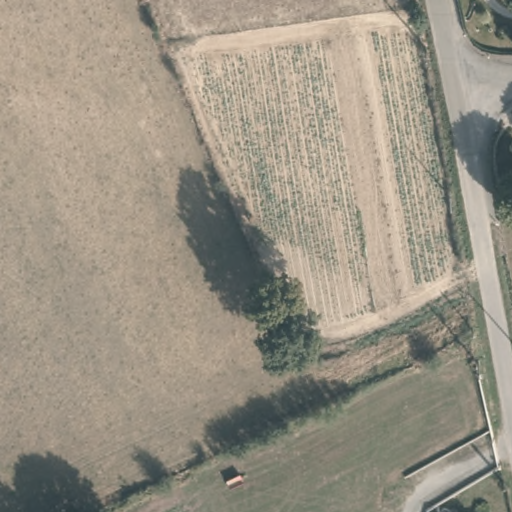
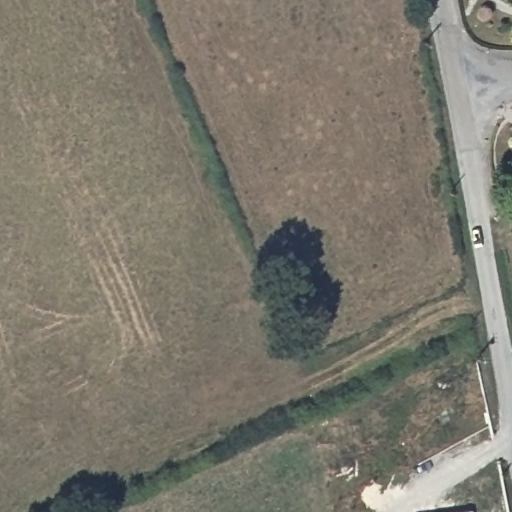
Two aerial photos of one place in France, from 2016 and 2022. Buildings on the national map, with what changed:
unchanged [(473,508),(474,512),(438,512),(473,508)]

